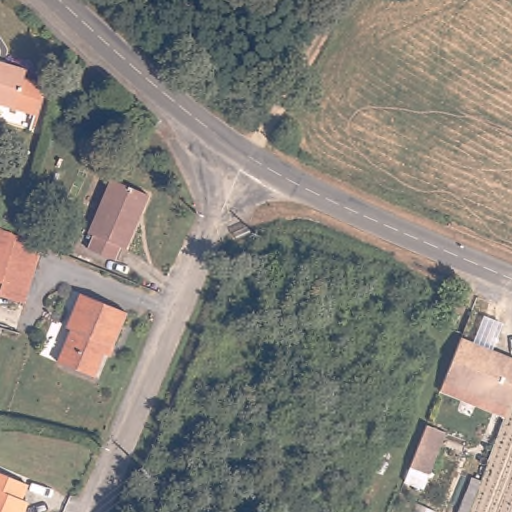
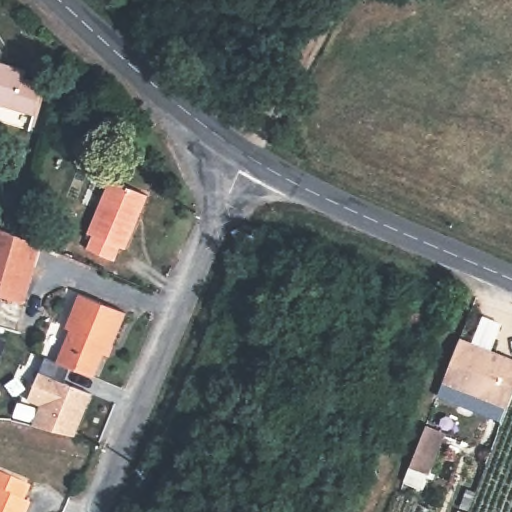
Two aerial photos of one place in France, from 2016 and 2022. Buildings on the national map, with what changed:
unchanged [(40,70),(59,75),(50,106),(0,92),(0,51),(42,63),(40,70)]
unchanged [(96,229),(91,226),(113,175),(149,191),(128,242),(121,238),(115,252),(91,242),(96,229)]
unchanged [(0,292),(2,282),(0,282),(0,225),(26,234),(29,221),(47,229),(25,302),(0,297),(0,292)]
unchanged [(71,326),(66,324),(80,290),(126,309),(112,343),(108,342),(95,374),(59,358),(71,326)]
unchanged [(506,413),(497,409),(438,386),(455,342),(512,365),(512,398),(506,413)]
new [(40,405),(26,400),(45,356),(56,361),(59,358),(71,364),(65,381),(92,393),(75,436),(31,426),(40,405)]
unchanged [(400,485),(425,421),(448,432),(423,491),(400,485)]
unchanged [(19,498),(25,502),(21,512),(0,512),(0,472),(25,483),(19,498)]

